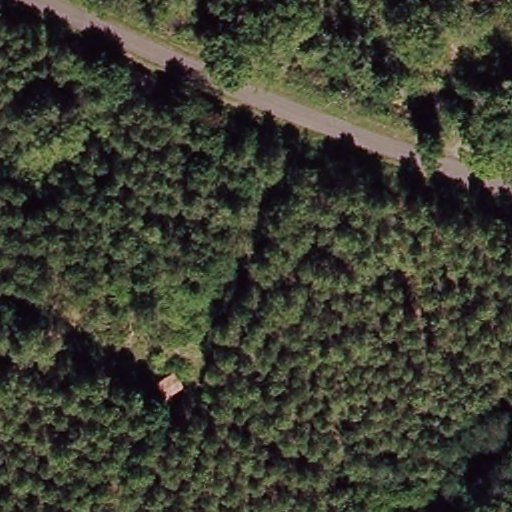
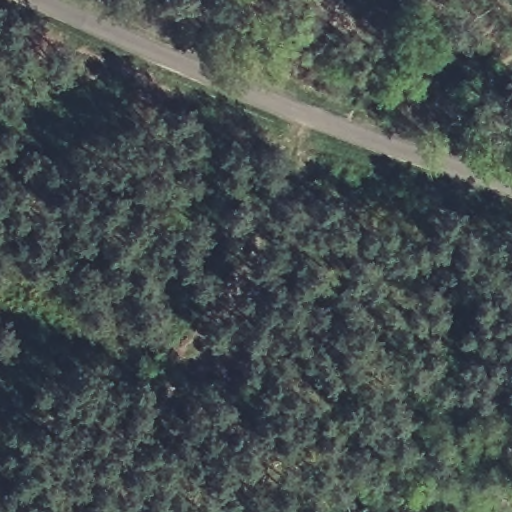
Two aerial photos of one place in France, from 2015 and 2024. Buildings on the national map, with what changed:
unchanged [(163,386),(182,376),(188,389),(170,399),(163,386)]

